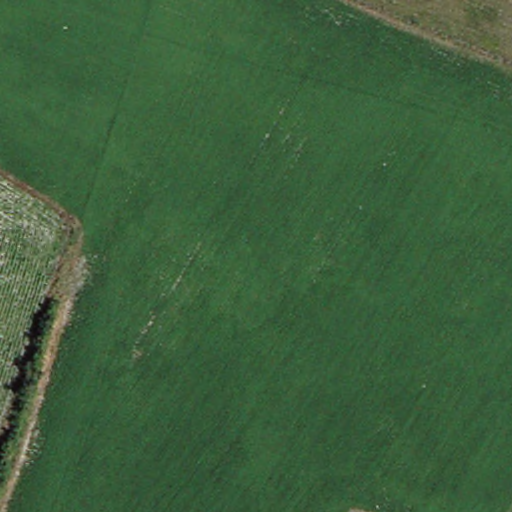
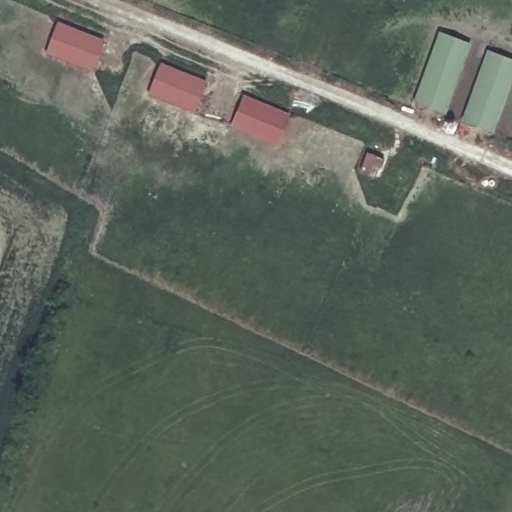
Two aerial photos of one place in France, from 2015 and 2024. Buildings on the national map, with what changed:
new [(48,55),(59,22),(106,40),(94,73),(48,55)]
new [(446,115),(414,103),(441,32),(473,44),(446,115)]
new [(494,133),(463,122),(489,51),(512,60),(512,86),(494,133)]
new [(148,95),(160,63),(206,81),(194,113),(148,95)]
new [(229,127),(241,95),(288,112),(276,144),(229,127)]

